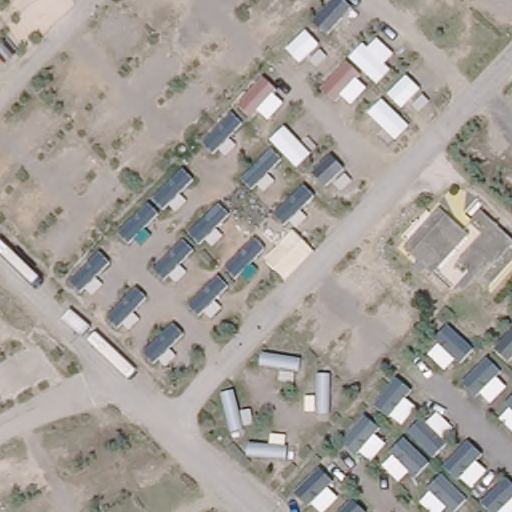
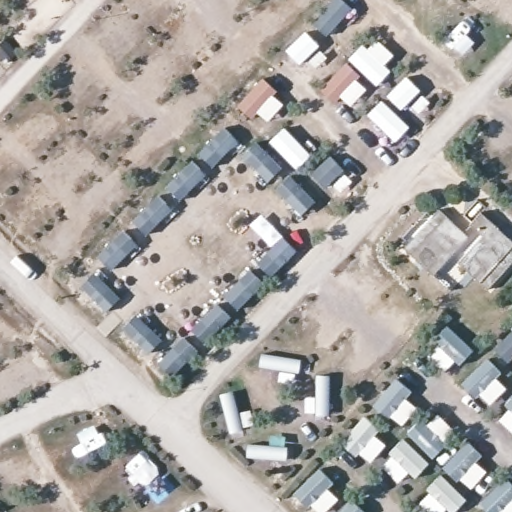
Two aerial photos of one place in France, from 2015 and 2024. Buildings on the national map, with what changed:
unchanged [(470,218),(480,206),(512,235),(512,256),(488,282),(462,261),(487,233),(470,218)]
unchanged [(405,248),(432,218),(430,216),(438,209),(465,234),(432,272),(405,248)]

